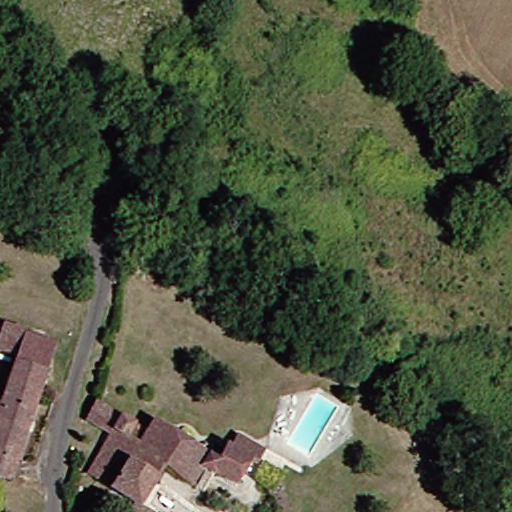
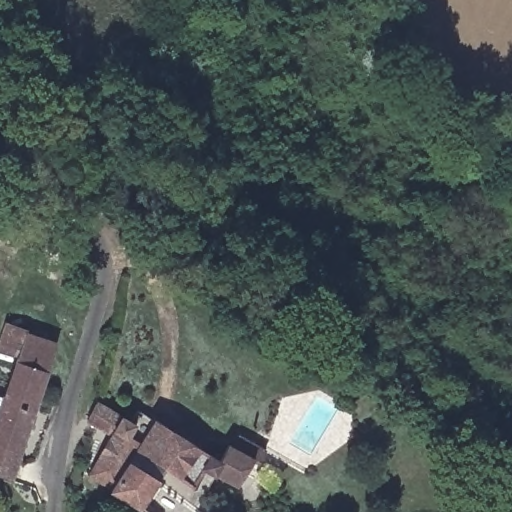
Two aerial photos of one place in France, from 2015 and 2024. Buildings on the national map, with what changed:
unchanged [(0,348),(0,331),(5,318),(31,328),(62,340),(14,482),(0,476),(0,409),(20,355),(0,348)]
unchanged [(155,417),(194,442),(205,426),(228,440),(234,444),(240,436),(270,455),(261,468),(257,466),(239,494),(209,474),(200,487),(175,471),(151,508),(154,512),(133,512),(82,479),(96,456),(84,449),(93,435),(80,427),(94,405),(142,436),(155,417)]

